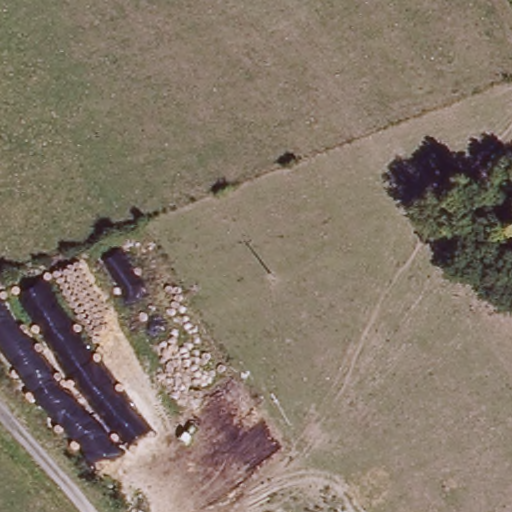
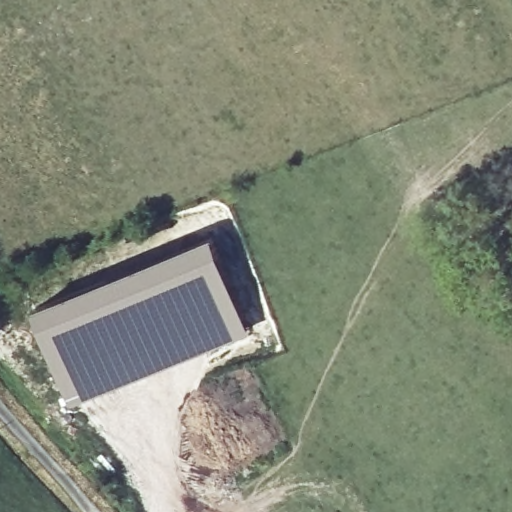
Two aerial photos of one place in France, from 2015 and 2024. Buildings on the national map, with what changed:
new [(34,307),(211,239),(248,333),(73,401),(34,307)]

